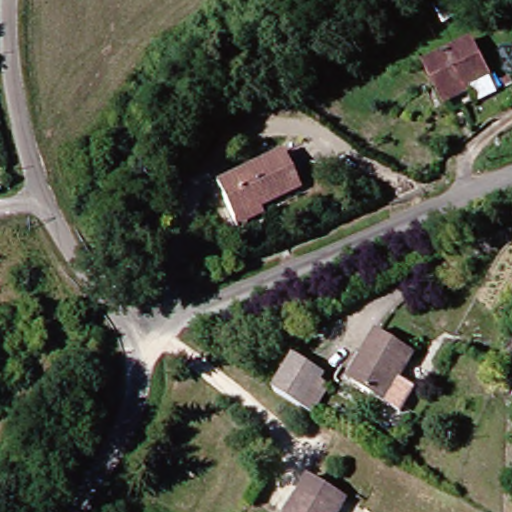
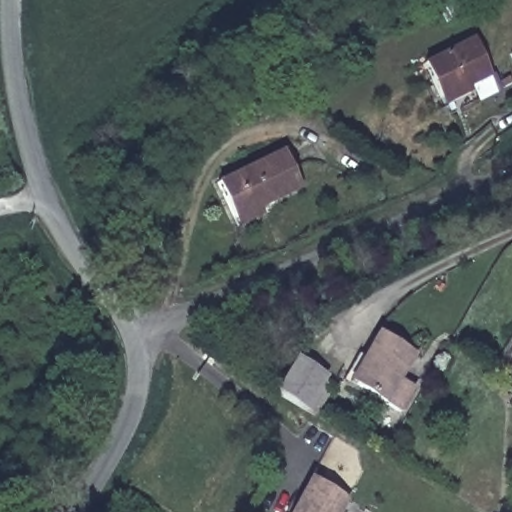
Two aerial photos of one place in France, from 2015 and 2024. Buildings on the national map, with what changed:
unchanged [(493,81),(447,107),(428,73),(474,48),(493,81)]
unchanged [(233,229),(229,222),(209,190),(274,150),(295,186),(253,209),(257,216),(233,229)]
unchanged [(352,353),(361,358),(378,330),(416,353),(386,403),(347,381),(338,376),(352,353)]
unchanged [(278,389),(297,357),(328,373),(309,406),(304,404),(278,390),(278,389)]
unchanged [(288,512),(307,477),(346,497),(337,512),(288,512)]

